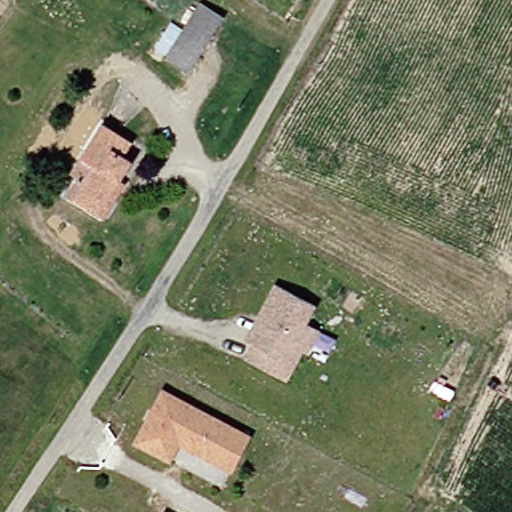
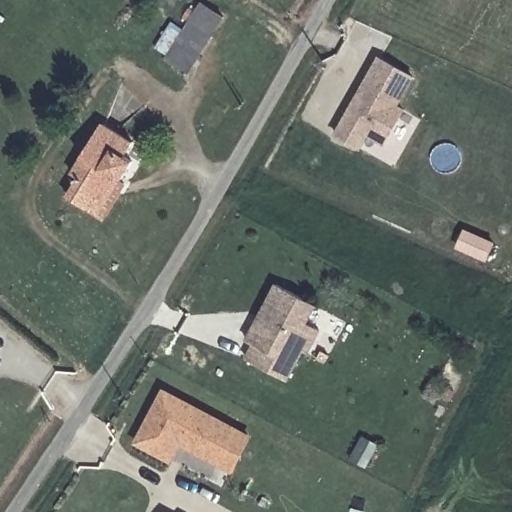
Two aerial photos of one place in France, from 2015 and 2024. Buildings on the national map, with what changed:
unchanged [(164,60),(180,32),(197,3),(219,15),(202,45),(186,72),(164,60)]
new [(379,60),(414,81),(396,110),(402,114),(384,143),(365,131),(355,147),(333,134),(379,60)]
unchanged [(63,195),(72,178),(66,175),(94,126),(125,143),(116,158),(122,161),(115,175),(95,213),(89,209),(63,195)]
unchanged [(304,350),(300,348),(283,378),(243,355),(251,341),(244,337),(257,314),(267,298),(276,282),(313,303),(305,317),(303,321),(316,328),(304,350)]
unchanged [(229,471),(216,463),(179,442),(169,459),(136,440),(165,391),(235,431),(248,438),(229,471)]

